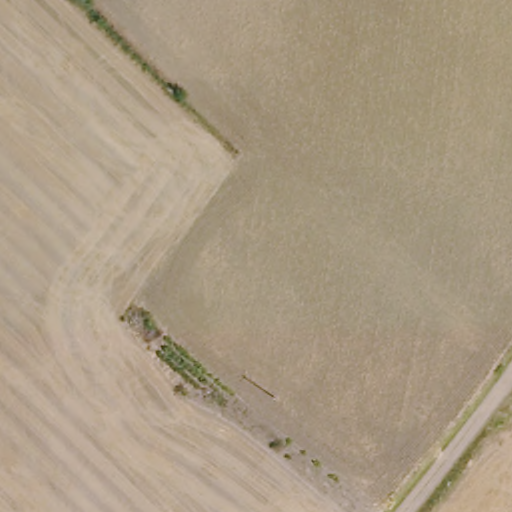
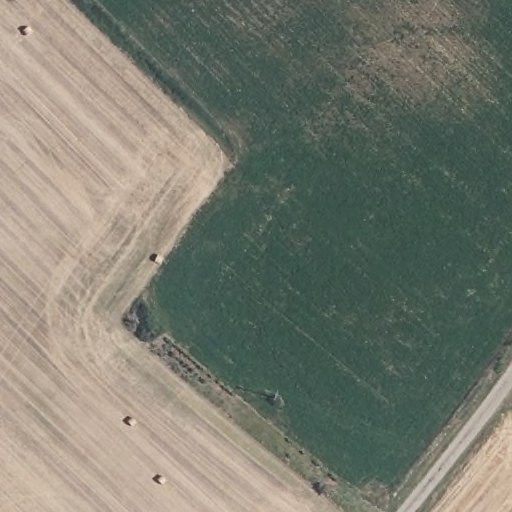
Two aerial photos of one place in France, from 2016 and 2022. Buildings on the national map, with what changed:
unchanged [(144,313),(149,321),(144,329),(133,329),(129,320),(134,312),(144,313)]

